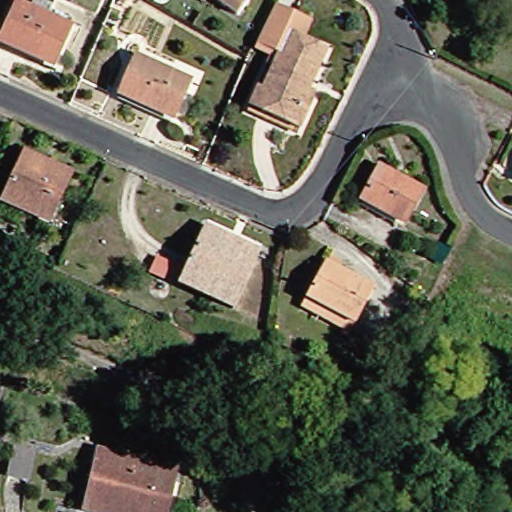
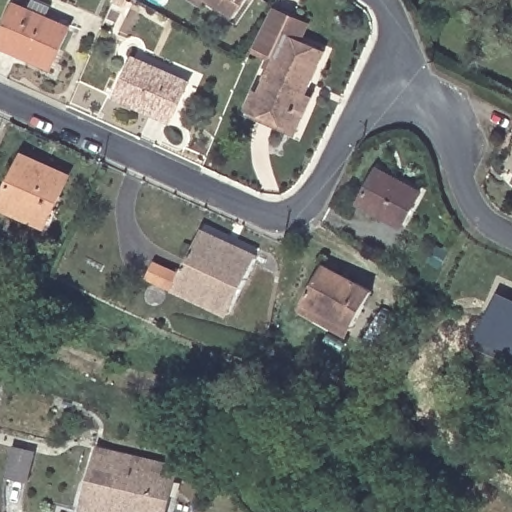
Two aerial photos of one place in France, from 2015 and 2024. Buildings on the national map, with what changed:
unchanged [(208,5),(201,0),(212,0),(208,5)]
unchanged [(241,17),(215,0),(252,0),(241,17)]
unchanged [(8,37),(22,7),(73,31),(58,67),(33,56),(6,42),(8,37)]
unchanged [(302,137),(252,114),(263,90),(269,92),(283,61),(261,51),(279,14),(301,24),(315,31),(308,47),(331,58),(313,97),(319,101),(313,114),(302,137)]
unchanged [(152,108),(128,97),(143,61),(195,85),(183,116),(181,121),(152,108)]
unchanged [(72,181),(52,225),(8,203),(28,160),(72,181)]
unchanged [(423,191),(408,224),(363,202),(379,170),(423,191)]
unchanged [(184,287),(189,277),(210,232),(266,258),(244,302),(240,312),(184,287)]
unchanged [(179,288),(164,281),(156,276),(163,261),(171,265),(187,272),(179,288)]
unchanged [(327,321),(310,312),(334,269),(382,293),(361,332),(358,337),(327,321)]
new [(512,302),(512,347),(485,333),(503,297),(512,302)]
new [(512,347),(512,363),(478,346),(485,333),(512,347)]
unchanged [(40,435),(32,462),(13,457),(20,430),(40,435)]
unchanged [(169,512),(117,512),(112,511),(112,512),(100,512),(88,509),(103,452),(180,472),(169,512)]

